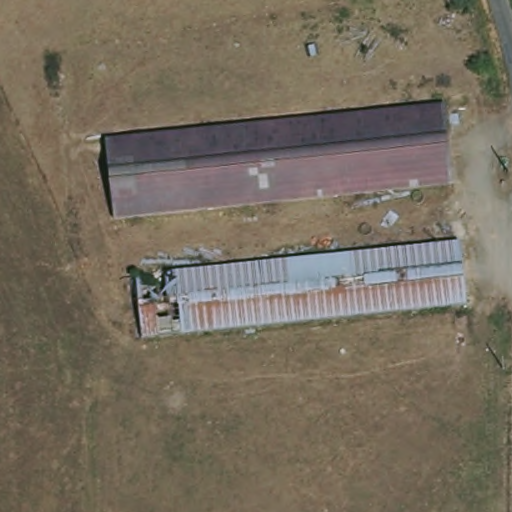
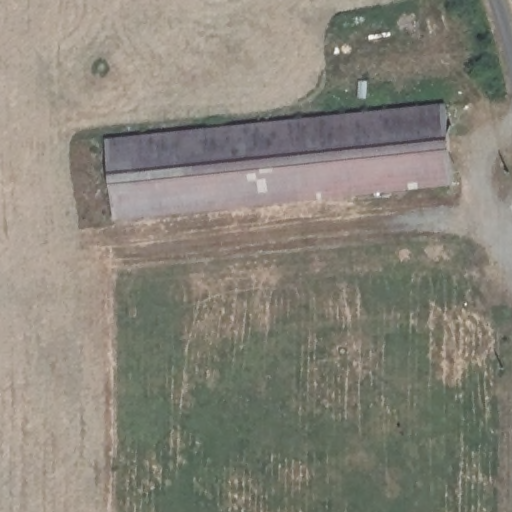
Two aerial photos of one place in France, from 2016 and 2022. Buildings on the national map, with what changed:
unchanged [(104,139),(440,105),(452,193),(113,223),(104,139)]
demolished [(138,343),(132,275),(459,241),(467,309),(138,343)]

